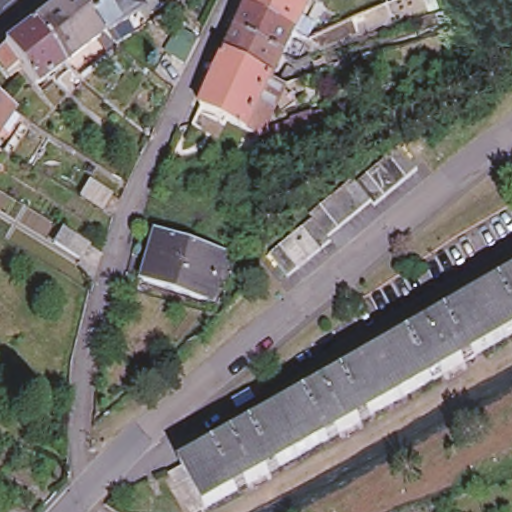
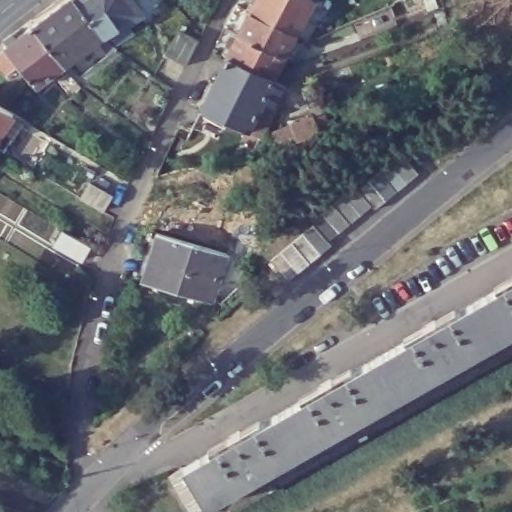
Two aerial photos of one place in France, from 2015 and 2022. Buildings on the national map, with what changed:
unchanged [(61,56),(30,16),(51,0),(79,0),(100,26),(61,56)]
unchanged [(100,26),(79,0),(129,0),(133,6),(100,26)]
unchanged [(248,0),(304,0),(292,24),(247,3),(248,0)]
unchanged [(243,121),(223,112),(214,128),(190,116),(198,100),(224,49),(224,47),(236,25),(247,3),(292,24),(289,30),(303,37),(295,54),(281,47),(273,63),(279,66),(276,73),(269,70),(257,95),(272,102),(257,128),(250,125),(247,131),(240,128),(243,121)]
unchanged [(356,22),(363,19),(392,7),(398,24),(370,35),(365,25),(358,27),(356,22)]
unchanged [(0,60),(0,39),(1,38),(30,16),(61,56),(32,76),(19,60),(8,69),(0,60)]
unchanged [(342,17),(344,23),(338,25),(336,19),(342,17)]
unchanged [(187,65),(166,55),(179,29),(200,39),(187,65)]
unchanged [(111,36),(115,40),(101,54),(94,41),(106,31),(111,36)]
unchanged [(93,80),(90,86),(79,78),(74,82),(70,77),(74,73),(65,62),(82,49),(90,60),(79,69),(83,74),(87,73),(93,80)]
unchanged [(0,123),(0,103),(10,108),(0,123)]
unchanged [(288,115),(311,108),(316,125),(294,132),(274,139),(268,121),(288,115)]
unchanged [(311,215),(308,210),(318,203),(329,194),(340,185),(351,176),(354,180),(365,172),(376,163),(387,154),(399,145),(415,166),(404,175),(393,184),(381,193),(371,202),(368,199),(357,207),(346,217),(335,225),(325,233),(328,237),(316,246),(305,256),(293,265),(284,273),(266,249),(275,243),(288,233),(300,224),(311,215)]
unchanged [(92,183),(113,196),(104,211),(83,198),(92,183)]
unchanged [(223,249),(208,297),(140,276),(154,228),(223,249)]
unchanged [(83,260),(56,245),(64,230),(91,245),(83,260)]
unchanged [(512,273),(512,325),(506,329),(483,289),(512,273)]
unchanged [(379,348),(483,289),(506,329),(402,387),(379,348)]
unchanged [(379,348),(402,387),(298,446),(276,407),(379,348)]
unchanged [(184,459),(276,407),(298,446),(206,498),(193,505),(172,466),(184,459)]

